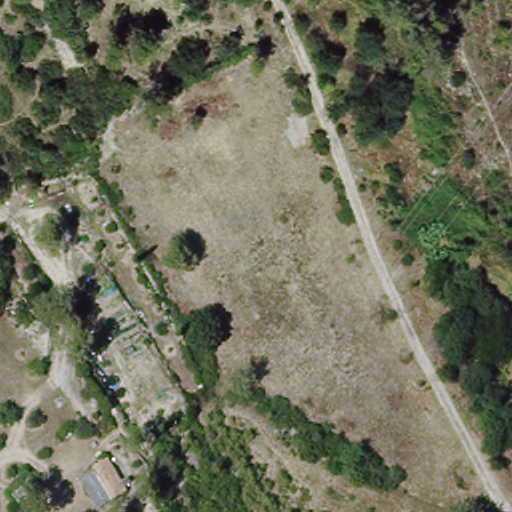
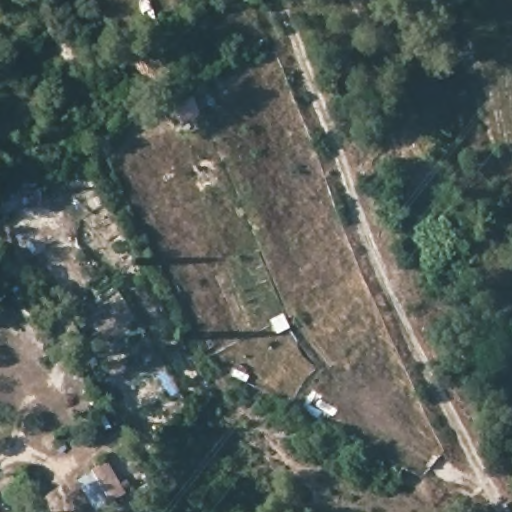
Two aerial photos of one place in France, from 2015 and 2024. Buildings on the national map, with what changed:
unchanged [(126,492),(113,498),(103,480),(116,473),(126,492)]

